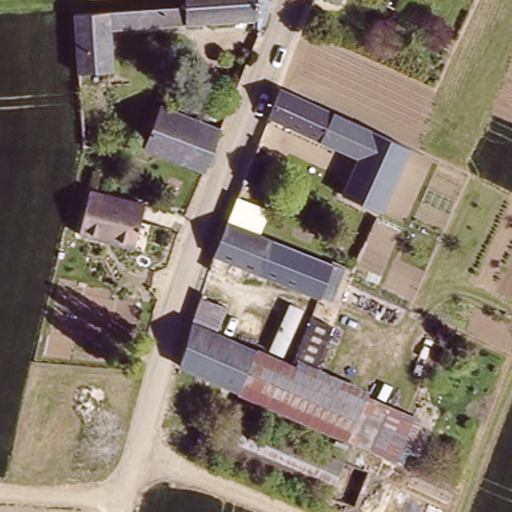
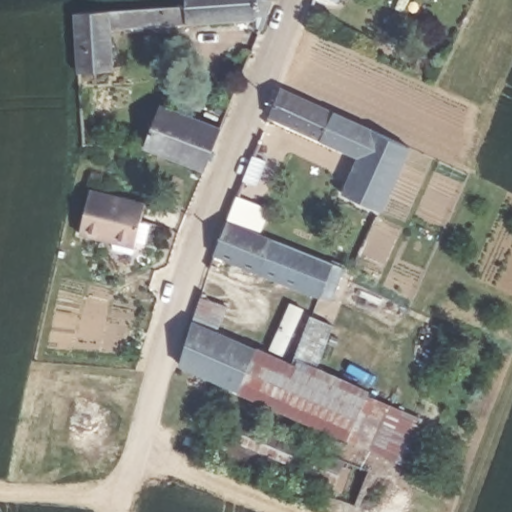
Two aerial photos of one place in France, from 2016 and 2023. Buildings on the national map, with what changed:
unchanged [(160,4),(184,2),(184,0),(264,0),(265,4),(275,4),(263,34),(251,35),(250,24),(162,30),(160,4)]
unchanged [(160,4),(162,30),(111,32),(113,85),(75,86),(73,8),(160,4)]
unchanged [(342,192),(355,158),(263,116),(275,87),(408,148),(380,209),(342,192)]
unchanged [(162,109),(218,130),(204,168),(146,148),(162,109)]
unchanged [(100,244),(77,240),(87,193),(145,206),(135,244),(133,249),(130,256),(100,244)]
unchanged [(350,271),(345,282),(335,305),(321,298),(245,266),(240,277),(212,266),(216,245),(227,217),(236,195),(254,205),(245,225),(335,265),(340,266),(350,271)]
unchanged [(190,322),(195,302),(207,308),(201,327),(256,349),(240,392),(177,366),(190,322)]
unchanged [(289,352),(305,316),(331,327),(314,363),(289,352)]
unchanged [(240,392),(256,349),(285,360),(289,352),(314,363),(313,365),(367,386),(345,438),(240,392)]
unchanged [(423,410),(403,463),(345,438),(367,386),(423,410)]
unchanged [(218,445),(232,412),(350,463),(335,495),(218,445)]

